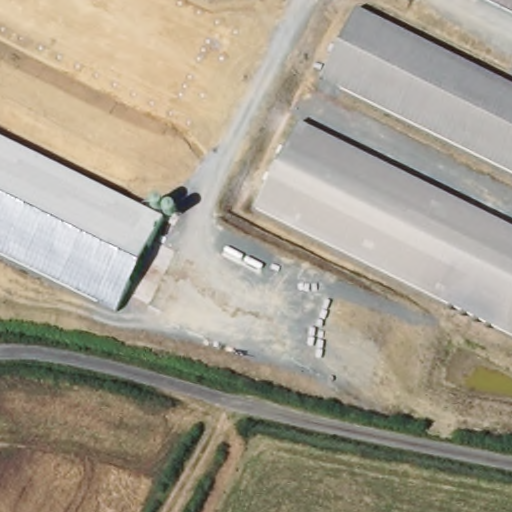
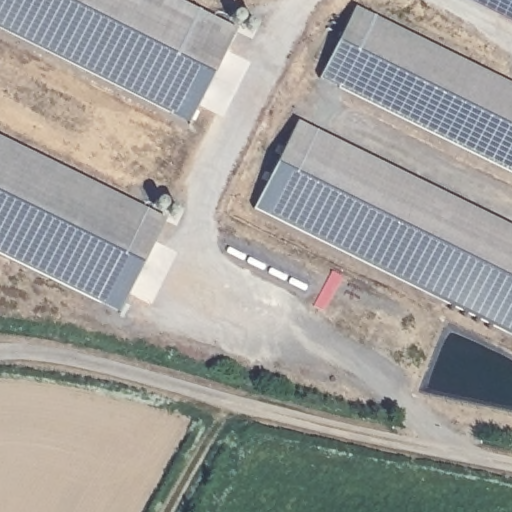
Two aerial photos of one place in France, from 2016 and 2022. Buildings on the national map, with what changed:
new [(0,0),(177,0),(236,29),(188,125),(0,30),(0,0)]
unchanged [(486,0),(512,0),(512,13),(486,0)]
unchanged [(512,84),(512,174),(321,77),(356,6),(512,84)]
unchanged [(512,225),(512,336),(257,207),(302,120),(512,225)]
unchanged [(117,313),(0,255),(0,138),(165,220),(117,313)]

